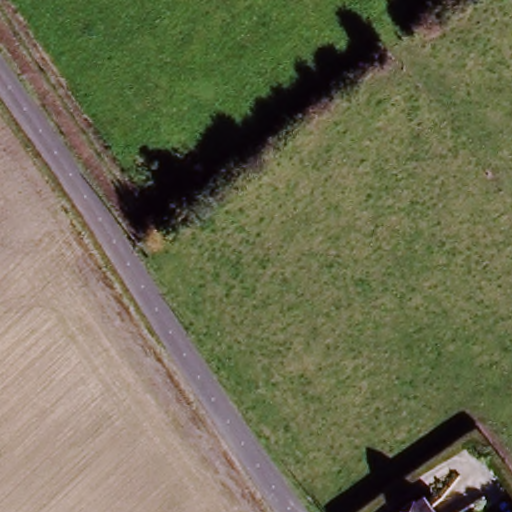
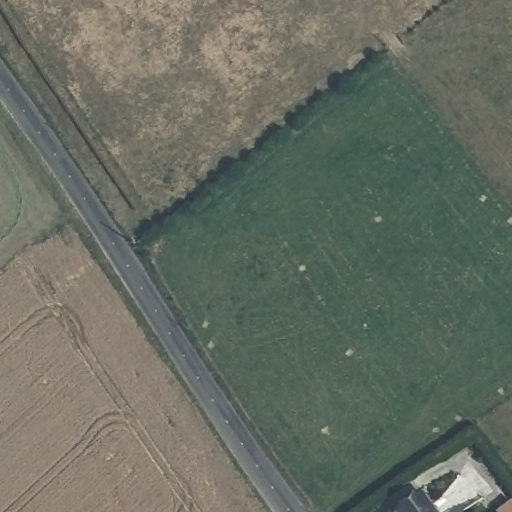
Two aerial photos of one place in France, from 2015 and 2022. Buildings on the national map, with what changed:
unchanged [(434,512),(394,512),(422,494),(434,512)]

